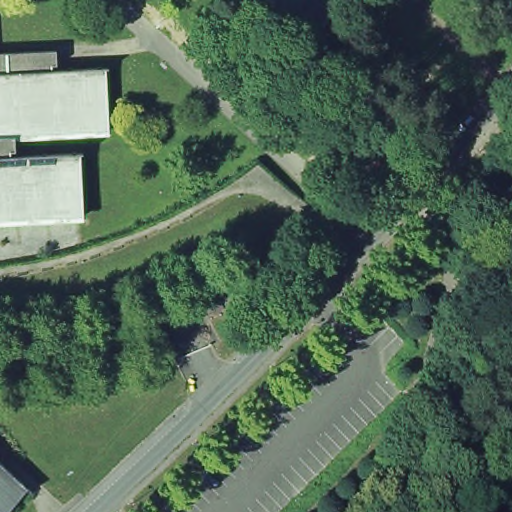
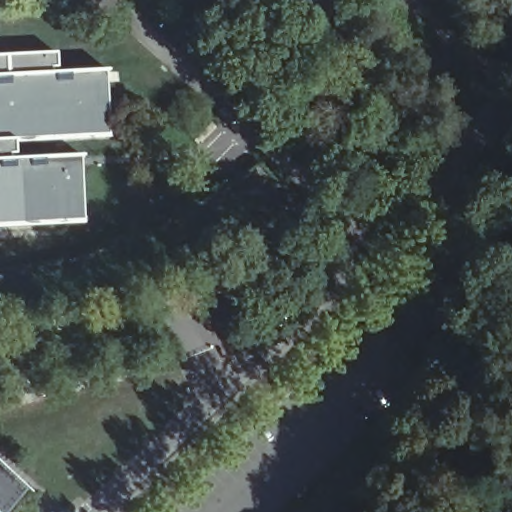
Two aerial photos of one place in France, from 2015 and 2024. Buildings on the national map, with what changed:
unchanged [(335,32),(321,27),(306,20),(292,11),(278,1),(277,0),(343,0),(340,12),(335,32)]
unchanged [(52,72),(47,72),(47,77),(98,75),(100,142),(10,147),(10,161),(5,161),(5,166),(72,162),(76,228),(0,232),(0,60),(52,57),(52,72)]
unchanged [(10,512),(6,512),(0,507),(0,452),(35,484),(10,512)]

